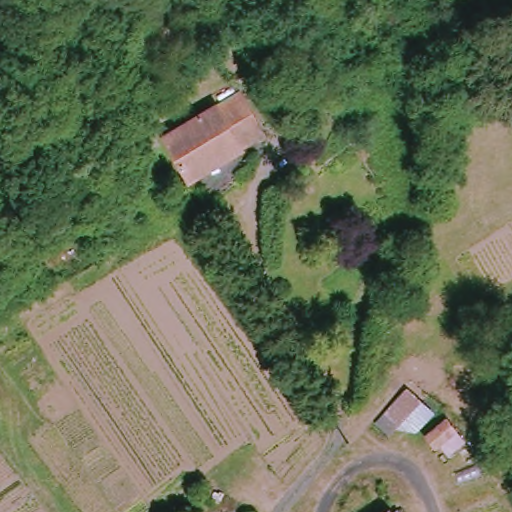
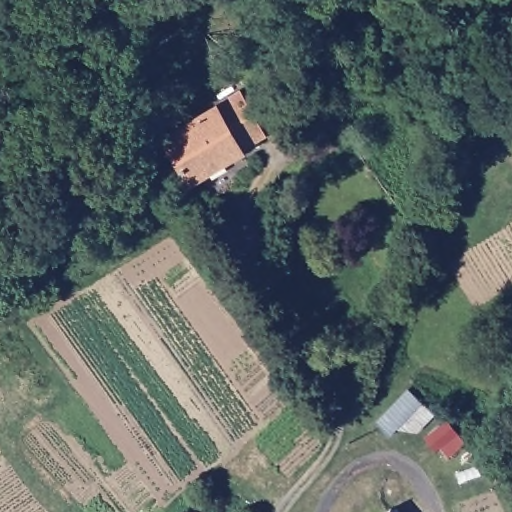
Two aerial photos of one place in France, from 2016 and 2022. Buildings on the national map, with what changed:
unchanged [(260,133),(237,148),(239,151),(188,182),(162,139),(236,94),(260,133)]
unchanged [(414,434),(395,431),(384,438),(367,424),(402,387),(448,440),(429,451),(414,434)]

